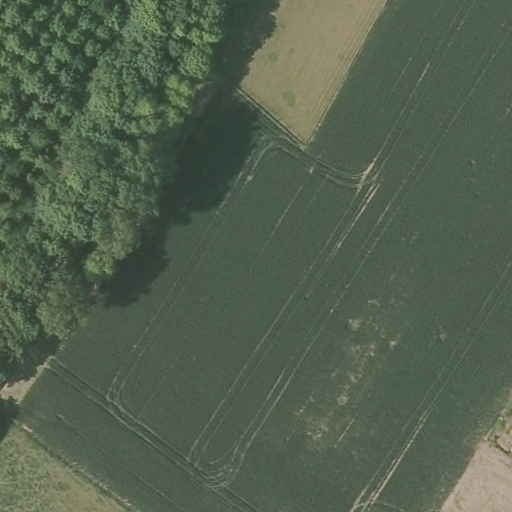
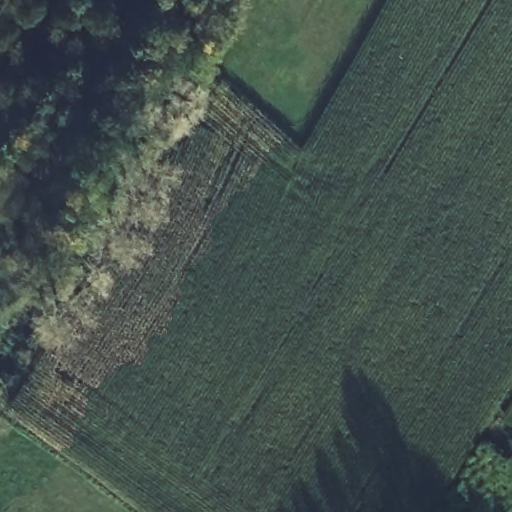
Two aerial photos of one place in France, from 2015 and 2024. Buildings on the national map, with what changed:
[]

